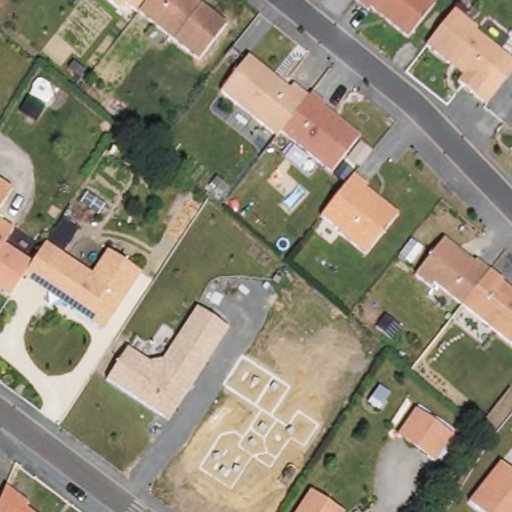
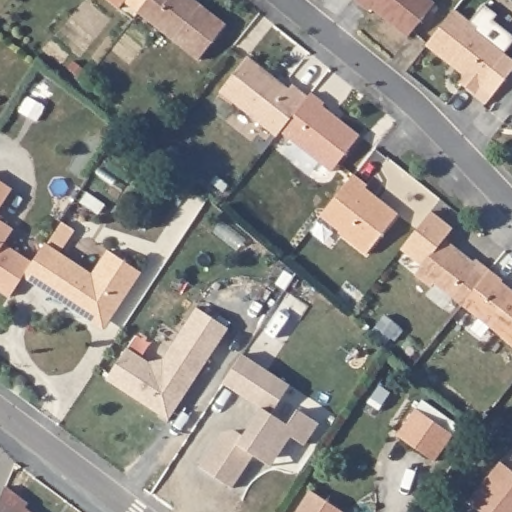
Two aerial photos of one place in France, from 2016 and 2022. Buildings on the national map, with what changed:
unchanged [(117,14),(99,0),(129,0),(117,14)]
unchanged [(232,27),(200,66),(136,13),(148,0),(198,0),(232,27)]
unchanged [(437,3),(405,44),(354,0),(433,0),(437,3)]
unchanged [(480,33),(478,35),(507,57),(472,97),(455,81),(461,75),(424,46),(454,11),(480,33)]
unchanged [(291,88),(295,84),(307,93),(310,90),(328,105),(324,108),(364,138),(334,173),(292,140),(287,145),(220,92),(246,61),(291,88)]
unchanged [(370,185),(366,192),(398,214),(362,257),(316,221),(353,172),(370,185)]
unchanged [(13,190),(0,211),(0,181),(13,190)]
unchanged [(0,290),(0,220),(14,230),(4,244),(33,263),(24,276),(11,297),(0,290)]
unchanged [(473,258),(512,291),(512,346),(435,285),(430,291),(412,277),(442,237),(470,262),(473,258)]
unchanged [(70,261),(52,288),(50,293),(24,276),(33,263),(43,247),(44,244),(70,261)]
unchanged [(93,276),(109,251),(141,272),(108,321),(97,324),(68,305),(71,300),(52,288),(70,261),(93,276)]
unchanged [(173,419),(105,380),(127,348),(150,361),(165,356),(196,306),(228,327),(173,419)]
new [(221,434),(235,431),(244,437),(261,409),(223,384),(242,355),(290,386),(271,415),(288,425),(298,410),(319,424),(305,446),(291,437),(277,459),(268,453),(254,456),(232,490),(199,468),(221,434)]
unchanged [(413,409),(452,438),(437,462),(395,434),(413,409)]
unchanged [(498,462),(512,471),(512,512),(483,512),(469,501),(498,462)]
unchanged [(0,512),(0,499),(6,484),(29,502),(26,506),(34,512),(0,512)]
unchanged [(340,512),(293,512),(307,490),(340,512)]

